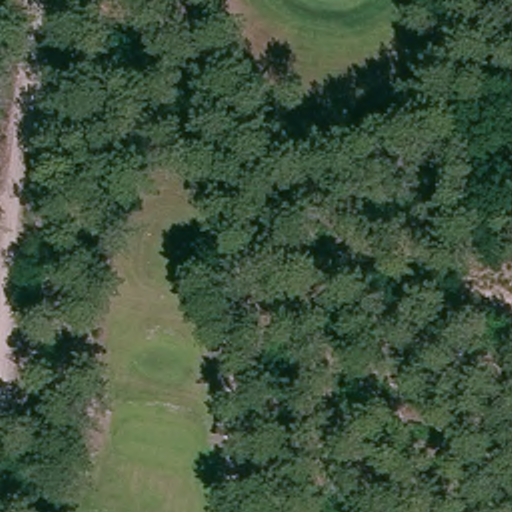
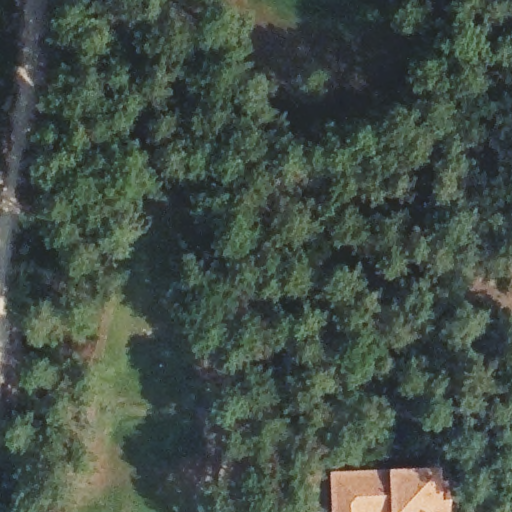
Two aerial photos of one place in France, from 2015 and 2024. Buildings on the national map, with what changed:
new [(394,468),(444,466),(444,481),(452,481),(454,512),(333,512),(332,471),(394,468)]

